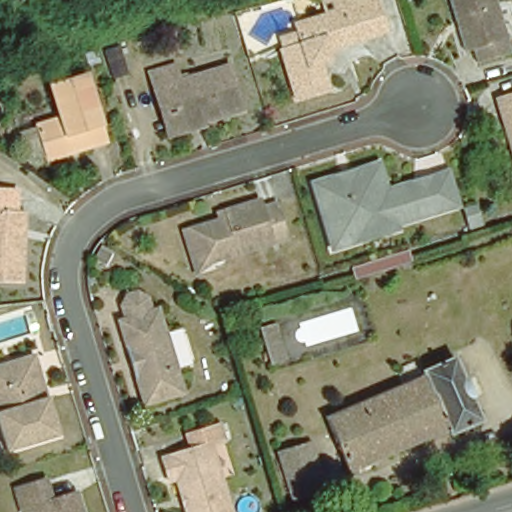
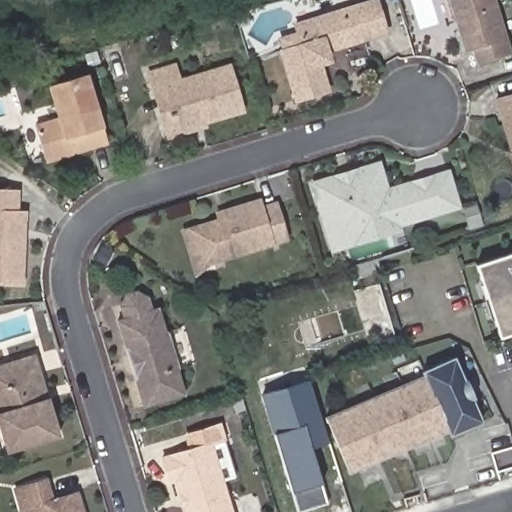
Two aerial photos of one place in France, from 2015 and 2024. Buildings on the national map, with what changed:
new [(326,17),(321,0),(377,0),(378,2),(326,17)]
unchanged [(507,48),(474,58),(470,44),(462,46),(448,0),(493,0),(507,48)]
unchanged [(320,64),(328,91),(296,100),(282,51),(301,45),(296,25),(378,2),(387,34),(327,51),(330,61),(320,64)]
unchanged [(168,144),(153,95),(147,77),(173,69),(179,86),(229,71),(243,115),(204,127),(206,132),(168,144)]
unchanged [(35,119),(59,112),(50,81),(85,70),(106,137),(46,156),(35,119)]
unchanged [(512,162),(492,99),(512,94),(512,162)]
unchanged [(355,246),(330,253),(310,187),(376,167),(384,194),(430,181),(445,177),(455,211),(440,215),(395,229),(396,233),(355,246)]
unchanged [(15,216),(19,216),(24,216),(23,241),(21,286),(0,286),(0,195),(16,196),(15,216)]
unchanged [(180,229),(188,227),(217,218),(215,211),(223,208),(258,198),(260,205),(274,201),(285,237),(210,259),(194,273),(180,229)]
new [(475,264),(512,252),(512,332),(498,336),(475,264)]
unchanged [(114,314),(120,312),(116,299),(122,288),(134,284),(145,290),(149,303),(155,301),(163,326),(162,326),(174,364),(175,364),(181,388),(140,400),(133,375),(122,340),(114,314)]
unchanged [(60,430),(7,445),(0,422),(0,359),(1,359),(35,349),(60,430)]
unchanged [(350,470),(329,416),(427,375),(425,371),(456,357),(482,421),(451,434),(449,430),(350,470)]
new [(314,450),(332,507),(318,512),(301,512),(265,400),(313,385),(331,444),(314,450)]
unchanged [(183,512),(174,482),(167,483),(160,459),(191,451),(187,436),(218,427),(223,442),(208,446),(229,512),(183,512)]
demolished [(314,437),(327,482),(290,493),(276,449),(314,437)]
unchanged [(46,486),(52,506),(77,499),(81,512),(33,512),(21,512),(16,494),(46,486)]

